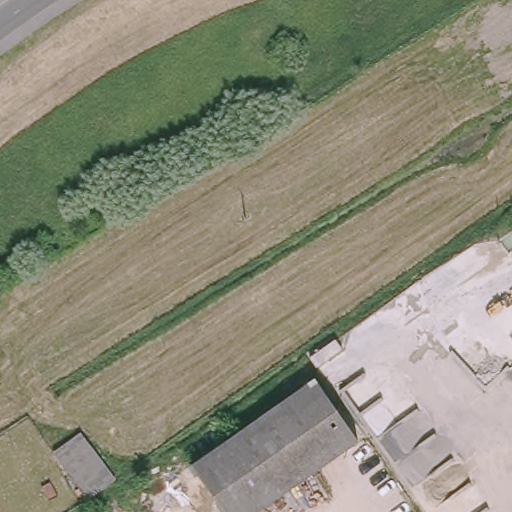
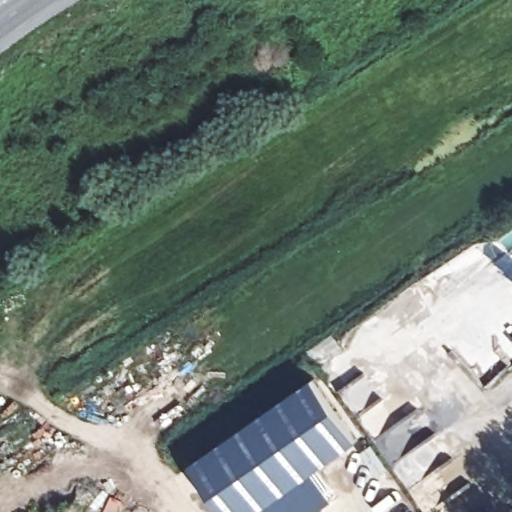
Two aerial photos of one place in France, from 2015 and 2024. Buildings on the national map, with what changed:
unchanged [(354,438),(247,512),(222,512),(187,462),(312,376),(354,438)]
demolished [(81,431),(117,477),(89,497),(56,450),(81,431)]
new [(317,512),(247,512),(314,465),(337,498),(317,512)]

